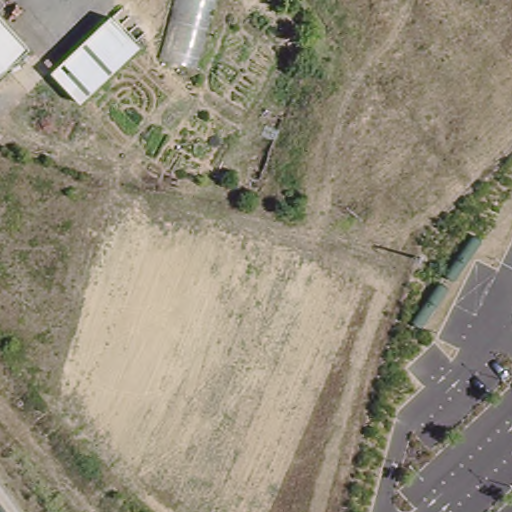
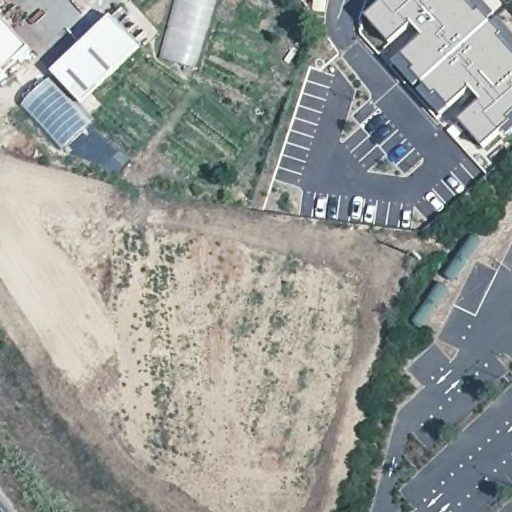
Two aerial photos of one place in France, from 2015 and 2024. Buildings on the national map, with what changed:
unchanged [(195,71),(157,61),(174,0),(215,0),(195,71)]
new [(496,16),(490,22),(494,26),(500,21),(512,35),(512,134),(509,137),(503,131),(485,149),(461,121),(482,103),(471,91),(450,107),(452,109),(441,117),(419,91),(424,85),(422,83),(416,89),(393,64),(423,38),(413,25),(391,45),(367,18),(385,1),(384,0),(482,0),(496,16)]
unchanged [(1,5),(0,5),(0,4),(1,5)]
unchanged [(137,49),(79,103),(52,74),(110,19),(137,49)]
unchanged [(29,50),(0,78),(0,20),(29,50)]

